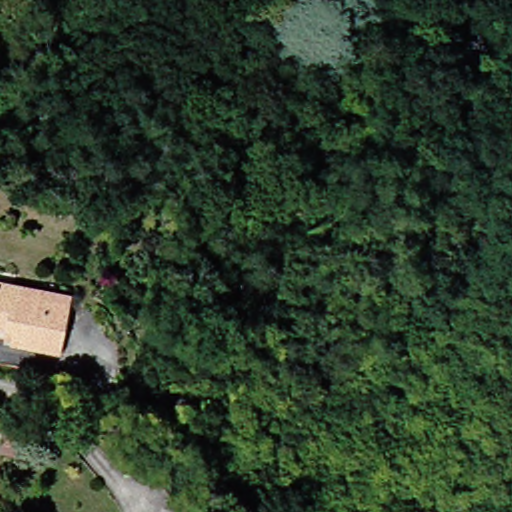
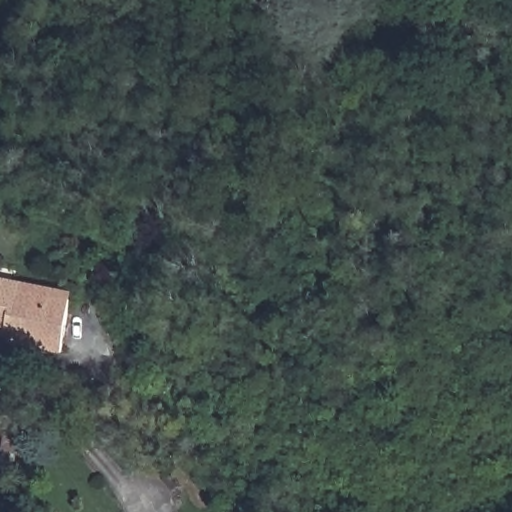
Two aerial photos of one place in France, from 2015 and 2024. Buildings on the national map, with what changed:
unchanged [(70,299),(61,351),(13,342),(14,330),(0,327),(0,277),(72,291),(70,299)]
unchanged [(20,437),(16,455),(3,452),(8,435),(20,437)]

